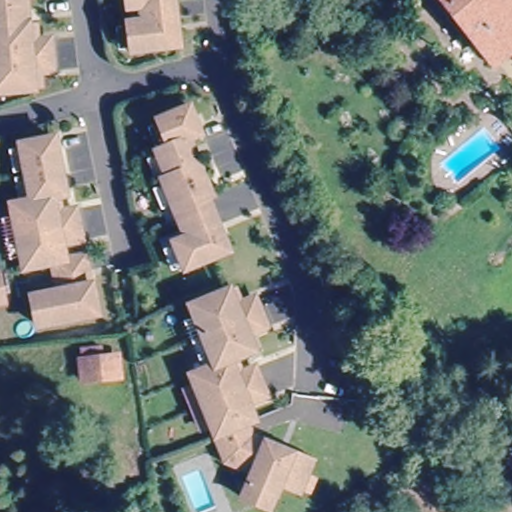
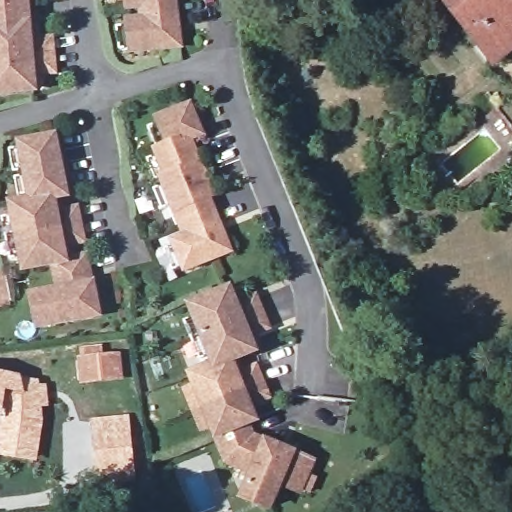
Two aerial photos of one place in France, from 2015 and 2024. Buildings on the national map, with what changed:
unchanged [(39,37),(60,35),(63,68),(41,69),(43,86),(2,90),(1,79),(0,79),(0,0),(36,0),(39,37)]
unchanged [(134,24),(134,20),(148,20),(147,5),(145,5),(133,6),(132,0),(179,0),(184,44),(137,47),(137,46),(124,46),(122,24),(134,24)]
unchanged [(442,0),(512,0),(512,44),(491,61),(442,0)]
unchanged [(174,248),(173,245),(187,240),(181,226),(179,226),(172,207),(160,212),(152,191),(164,187),(162,182),(167,180),(166,177),(154,182),(146,162),(158,157),(156,154),(146,127),(158,122),(189,109),(200,137),(188,142),(210,198),(206,200),(227,255),(183,272),(182,269),(171,273),(163,252),(174,248)]
unchanged [(10,219),(23,218),(20,206),(28,205),(41,203),(35,172),(21,175),(18,151),(31,150),(30,145),(63,140),(74,196),(61,199),(63,215),(85,211),(91,241),(70,245),(72,261),(93,258),(104,315),(58,325),(52,296),(67,294),(61,265),(32,270),(30,260),(18,261),(10,219)]
unchanged [(9,273),(14,302),(0,305),(0,275),(9,273)]
unchanged [(249,484),(255,470),(229,460),(214,423),(203,428),(187,388),(199,384),(194,373),(218,365),(214,353),(203,358),(187,319),(198,315),(193,303),(232,288),(238,305),(258,296),(270,325),(249,333),(256,350),(233,359),(238,373),(258,366),(269,395),(250,402),(256,420),(248,421),(254,435),(313,461),(300,490),(282,482),(276,496),(271,507),(243,496),(249,484)]
unchanged [(118,353),(123,420),(91,422),(83,364),(118,353)]
new [(6,372),(49,382),(50,407),(45,407),(39,461),(0,456),(0,434),(3,419),(0,419),(0,371),(6,372)]
new [(119,421),(120,430),(125,430),(129,466),(135,465),(136,482),(98,486),(91,424),(119,421)]

